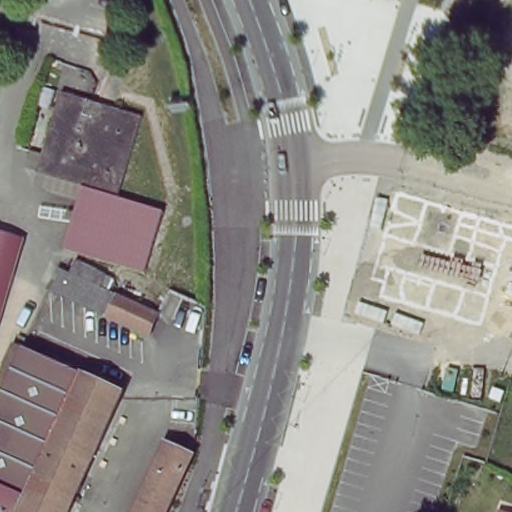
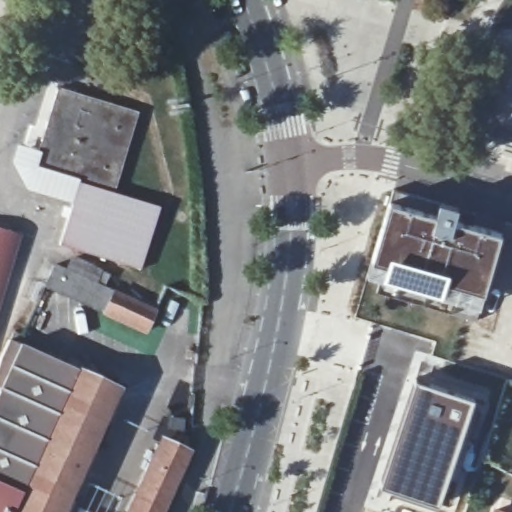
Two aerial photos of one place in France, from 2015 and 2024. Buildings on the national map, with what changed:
unchanged [(115,191),(158,205),(139,268),(59,244),(72,200),(78,182),(30,168),(36,152),(55,86),(138,111),(115,191)]
new [(26,186),(12,163),(18,146),(36,152),(30,168),(78,182),(72,200),(26,186)]
new [(378,275),(370,272),(372,258),(390,200),(437,213),(441,200),(459,205),(456,220),(502,232),(485,292),(483,306),(478,305),(476,320),(377,291),(378,275)]
unchanged [(0,301),(0,228),(20,234),(0,301)]
unchanged [(140,331),(40,286),(49,265),(61,270),(65,258),(103,274),(98,286),(149,309),(140,331)]
unchanged [(0,360),(0,358),(10,340),(18,343),(118,389),(63,512),(0,512),(0,360)]
new [(463,395),(427,498),(364,479),(399,376),(463,395)]
unchanged [(160,441),(187,453),(161,512),(127,512),(160,441)]
unchanged [(490,503),(512,509),(512,512),(487,512),(490,503)]

